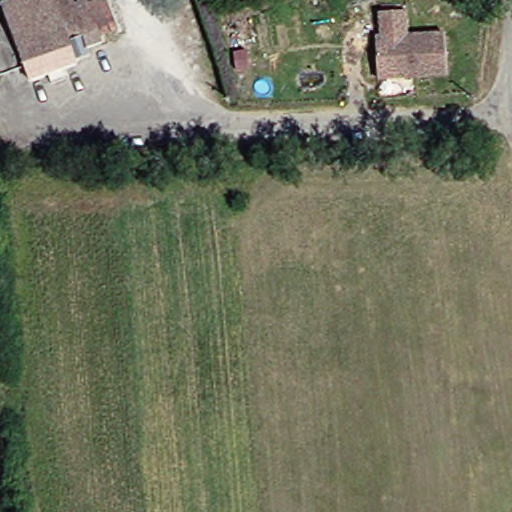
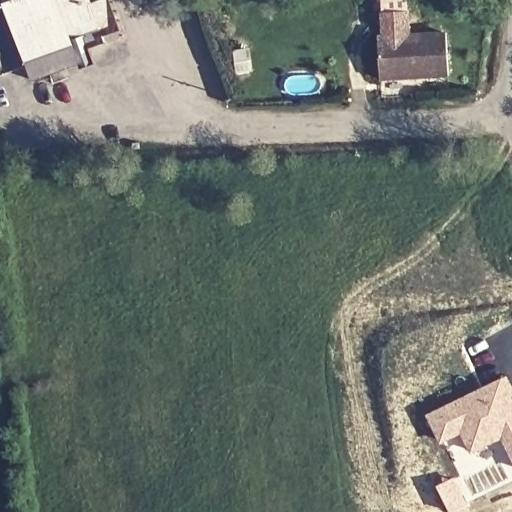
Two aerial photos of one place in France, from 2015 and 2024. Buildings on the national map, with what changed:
unchanged [(10,2),(9,0),(17,0),(14,1),(10,2)]
unchanged [(77,40),(79,45),(33,60),(14,1),(17,0),(96,0),(106,30),(77,40)]
unchanged [(377,38),(383,38),(382,13),(407,11),(408,36),(446,34),(448,76),(380,79),(377,38)]
new [(512,461),(502,438),(471,453),(462,433),(440,443),(426,414),(507,374),(512,383),(512,461)]

